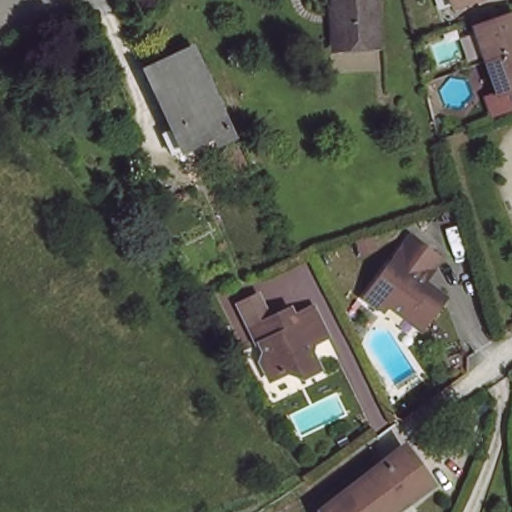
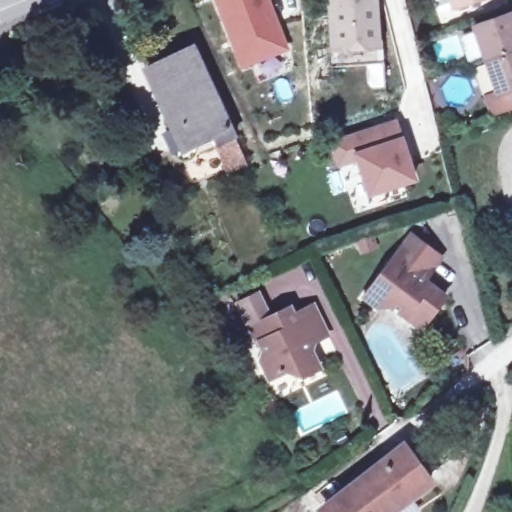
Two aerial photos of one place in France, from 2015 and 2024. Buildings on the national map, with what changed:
new [(235,48),(216,0),(267,0),(276,24),(285,46),(279,49),(251,60),(241,63),(235,48)]
unchanged [(375,48),(335,51),(331,0),(372,0),(375,48)]
unchanged [(452,12),(448,0),(484,0),(452,12)]
unchanged [(510,17),(512,21),(512,55),(485,65),(473,31),(510,17)]
unchanged [(234,135),(195,155),(191,144),(183,148),(145,66),(191,44),(234,135)]
unchanged [(512,92),(496,97),(485,65),(512,55),(512,92)]
new [(397,122),(416,178),(372,193),(360,157),(341,163),(335,143),(397,122)]
unchanged [(405,316),(390,305),(376,307),(363,297),(410,235),(440,258),(423,280),(445,296),(432,313),(421,328),(405,316)]
unchanged [(268,314),(290,303),(300,323),(305,320),(299,309),(312,302),(327,331),(314,338),(310,331),(305,334),(320,363),(301,373),(294,360),(283,366),(285,368),(269,376),(258,357),(262,349),(264,348),(258,338),(256,339),(248,323),(251,322),(238,299),(255,289),(268,314)]
unchanged [(321,508),(404,446),(429,481),(386,512),(322,512),(320,509),(321,508)]

